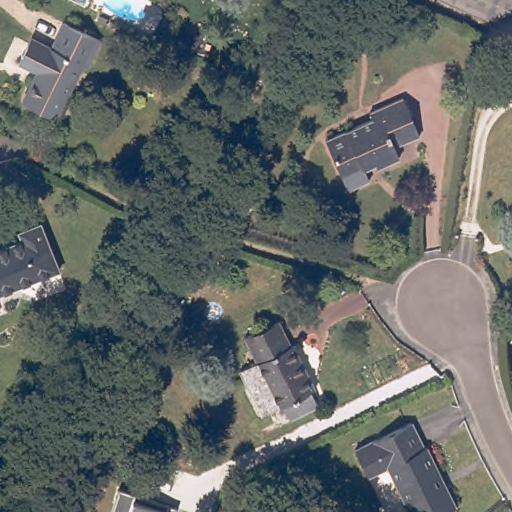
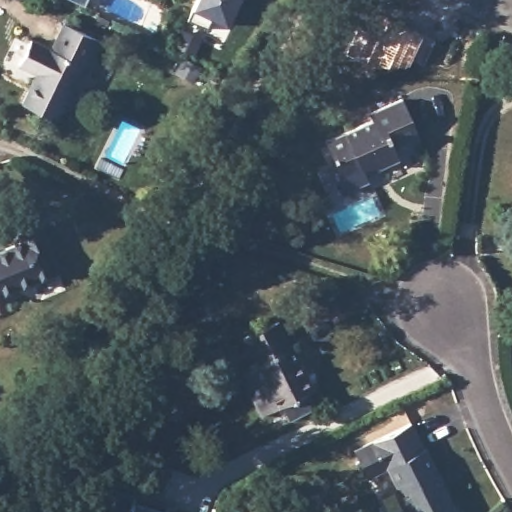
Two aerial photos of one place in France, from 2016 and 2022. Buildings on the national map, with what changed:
new [(84,3),(78,0),(85,0),(84,3)]
new [(227,25),(212,18),(207,28),(189,18),(195,8),(198,0),(238,0),(227,25)]
unchanged [(20,69),(32,45),(51,54),(65,28),(100,45),(87,72),(83,69),(56,122),(24,106),(37,77),(20,69)]
unchanged [(326,141),(372,121),(370,115),(403,100),(418,134),(393,145),(400,157),(378,167),(375,163),(364,168),(370,182),(349,192),(326,141)]
unchanged [(19,233),(39,225),(57,272),(0,294),(0,249),(22,241),(19,233)]
unchanged [(240,370),(256,362),(245,338),(277,322),(289,346),(292,345),(314,389),(310,391),(317,405),(292,417),(285,403),(262,415),(240,370)]
unchanged [(414,424),(426,449),(428,448),(458,508),(449,512),(413,512),(390,466),(372,475),(360,451),(414,424)]
unchanged [(232,473),(242,468),(245,475),(236,479),(232,473)]
unchanged [(178,512),(112,512),(120,487),(179,508),(178,512)]
unchanged [(229,501),(236,503),(234,512),(230,512),(226,511),(229,501)]

